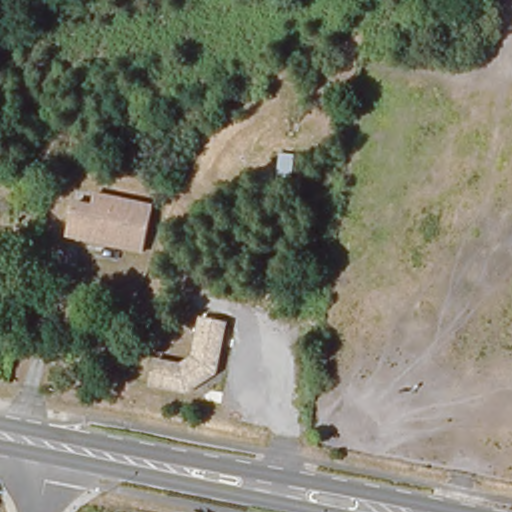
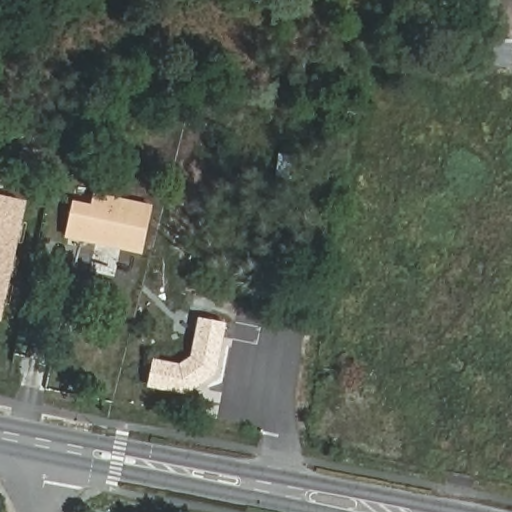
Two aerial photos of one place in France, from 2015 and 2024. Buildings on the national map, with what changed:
new [(3,191),(0,189),(0,174),(8,177),(3,191)]
new [(0,315),(0,194),(26,199),(2,315),(0,315)]
unchanged [(70,209),(90,212),(92,199),(150,211),(142,257),(65,241),(70,209)]
unchanged [(185,367),(197,359),(202,320),(229,322),(222,377),(192,398),(151,392),(157,361),(185,367)]

